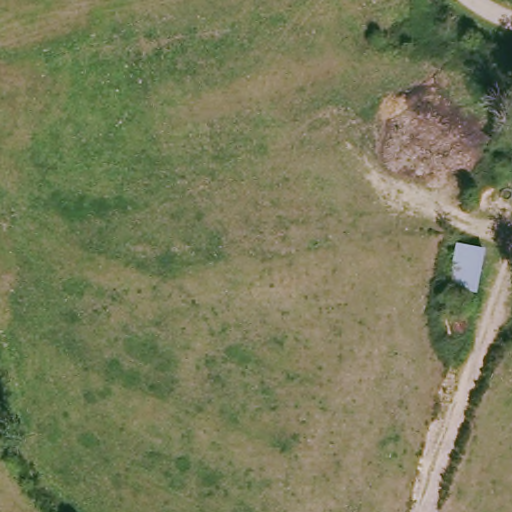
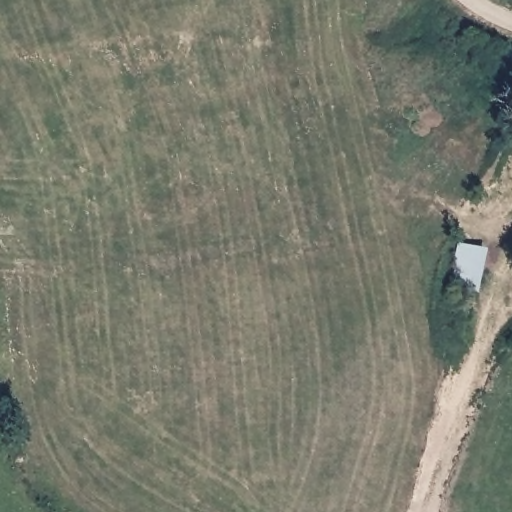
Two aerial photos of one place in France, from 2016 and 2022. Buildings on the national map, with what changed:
unchanged [(459,253),(492,256),(485,296),(447,291),(459,253)]

